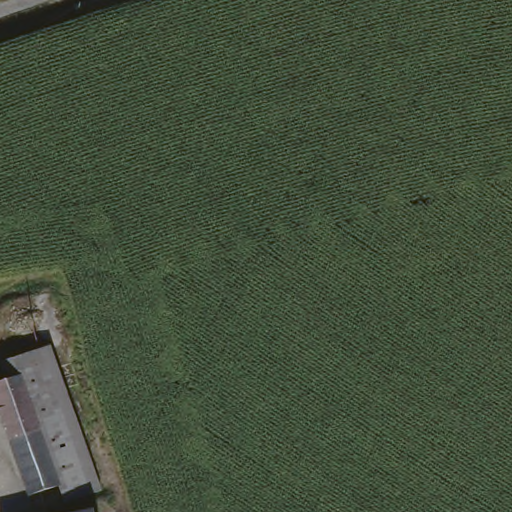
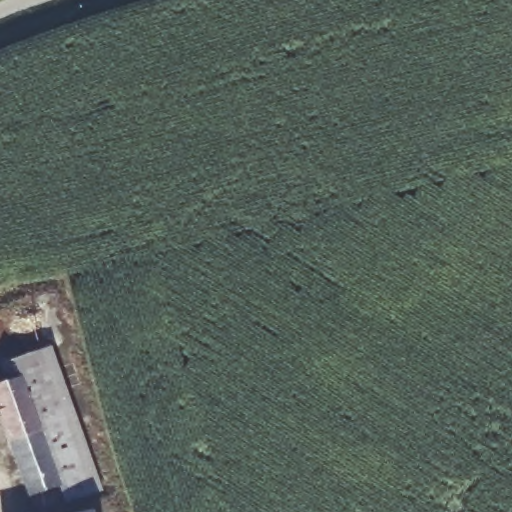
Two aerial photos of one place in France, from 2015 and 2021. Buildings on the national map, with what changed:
unchanged [(7,382),(2,366),(39,354),(86,496),(64,503),(58,485),(23,377),(7,382)]
unchanged [(23,499),(0,425),(0,384),(7,382),(23,377),(58,485),(23,499)]

